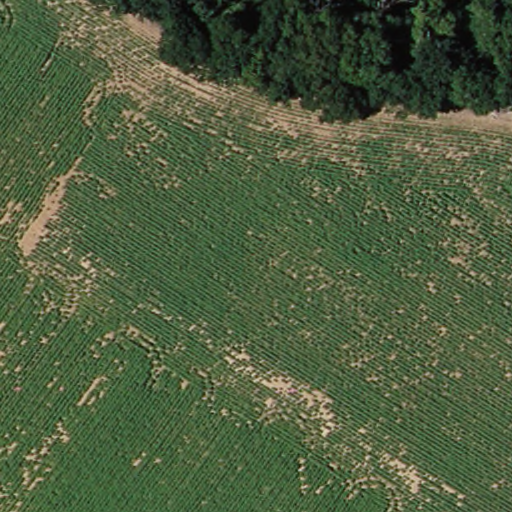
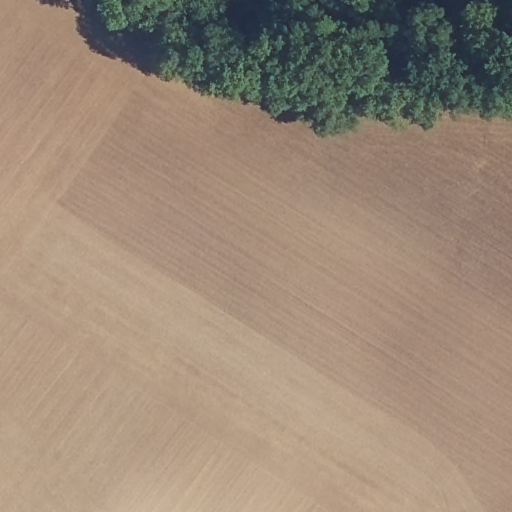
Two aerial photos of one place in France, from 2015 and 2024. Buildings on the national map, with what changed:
[]

